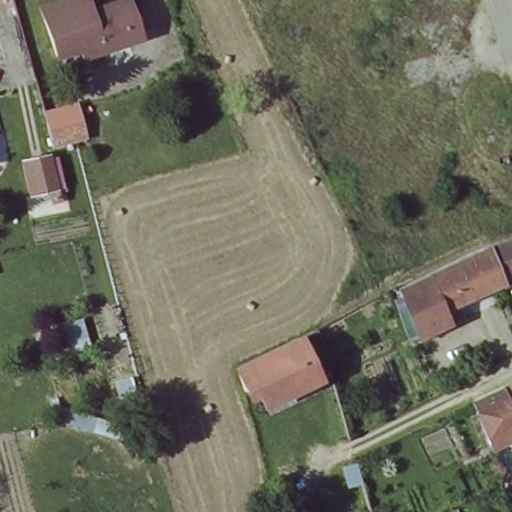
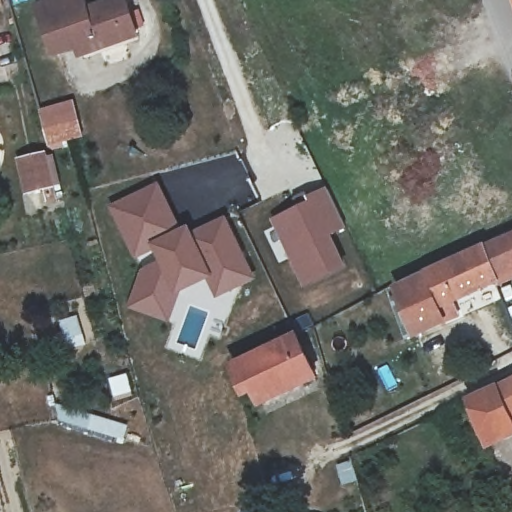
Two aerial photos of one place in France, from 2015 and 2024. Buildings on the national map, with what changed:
unchanged [(86,0),(88,5),(102,0),(124,0),(128,11),(139,7),(144,23),(131,28),(133,34),(80,51),(76,42),(48,50),(35,5),(49,0),(86,0)]
unchanged [(33,111),(67,104),(76,144),(43,151),(33,111)]
unchanged [(25,195),(17,163),(45,156),(53,188),(25,195)]
new [(160,185),(181,230),(189,226),(193,235),(226,218),(257,280),(217,300),(208,280),(183,292),(171,323),(128,309),(142,271),(110,209),(160,185)]
new [(294,209),(293,203),(327,189),(346,229),(333,235),(347,267),(304,289),(271,221),(294,209)]
unchanged [(512,234),(512,272),(498,279),(484,248),(512,234)]
unchanged [(398,289),(484,248),(498,279),(456,297),(463,315),(419,334),(398,289)]
unchanged [(276,341),(293,333),(315,372),(289,385),(276,341)]
unchanged [(289,385),(261,399),(253,382),(241,387),(234,362),(276,341),(289,385)]
unchanged [(487,435),(470,397),(512,377),(512,423),(487,435)]

